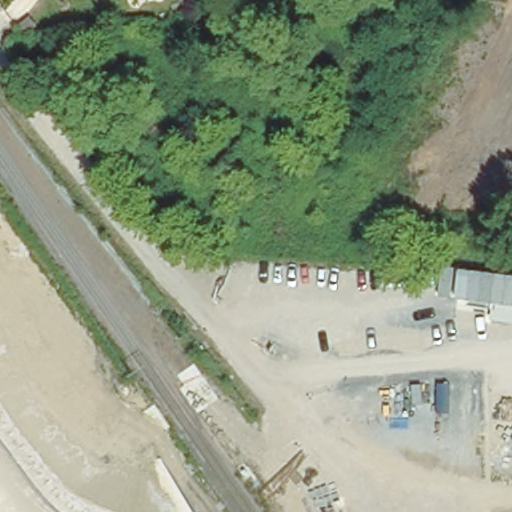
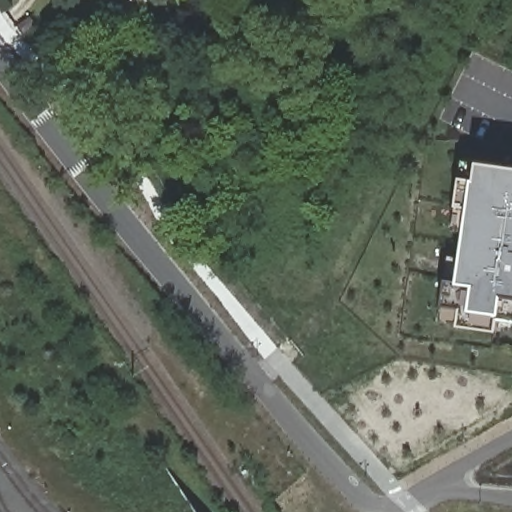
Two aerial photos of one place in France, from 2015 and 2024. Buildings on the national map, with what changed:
new [(512,317),(496,315),(495,325),(459,321),(461,305),(442,303),(445,278),(454,278),(472,160),(512,165),(512,317)]

